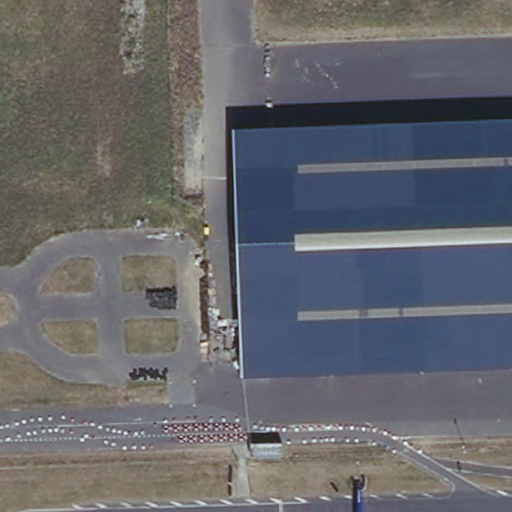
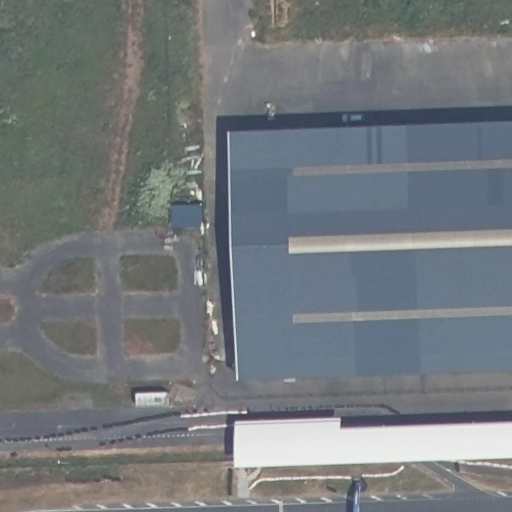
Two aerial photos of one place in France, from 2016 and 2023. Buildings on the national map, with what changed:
unchanged [(512,372),(240,382),(232,132),(512,123),(512,372)]
new [(348,420),(512,413),(512,450),(242,458),(243,416),(348,412),(348,420)]

